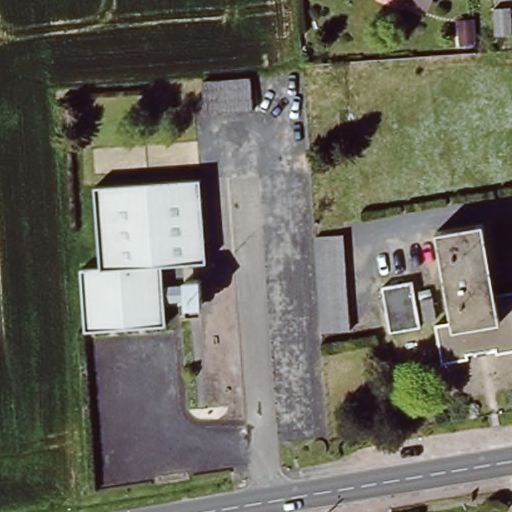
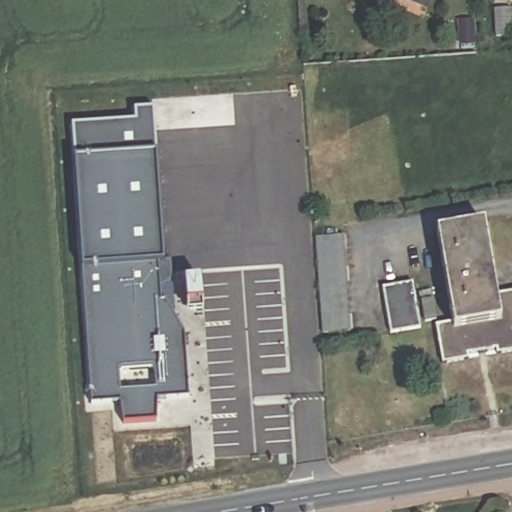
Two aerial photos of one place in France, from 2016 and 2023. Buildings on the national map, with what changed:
unchanged [(434,5),(424,0),(436,0),(434,5)]
unchanged [(512,39),(509,39),(508,12),(512,11),(512,39)]
demolished [(251,75),(253,110),(207,113),(206,78),(251,75)]
new [(157,399),(156,419),(124,421),(120,401),(91,403),(83,268),(76,158),(73,125),(136,121),(135,109),(154,108),(158,153),(164,263),(158,263),(161,302),(166,301),(184,333),(189,397),(157,399)]
demolished [(206,186),(210,264),(167,266),(168,285),(168,301),(168,329),(86,329),(86,267),(103,267),(102,192),(206,186)]
unchanged [(512,290),(512,349),(507,350),(507,345),(474,349),(474,356),(446,360),(442,324),(456,322),(442,228),(491,224),(499,292),(512,290)]
unchanged [(351,330),(324,332),(319,237),(345,235),(351,330)]
new [(202,305),(203,313),(187,314),(186,304),(184,280),(200,279),(202,305)]
unchanged [(419,279),(427,326),(398,330),(391,284),(419,279)]
demolished [(191,315),(187,281),(206,281),(210,314),(191,315)]
unchanged [(438,297),(442,319),(432,320),(429,299),(438,297)]

